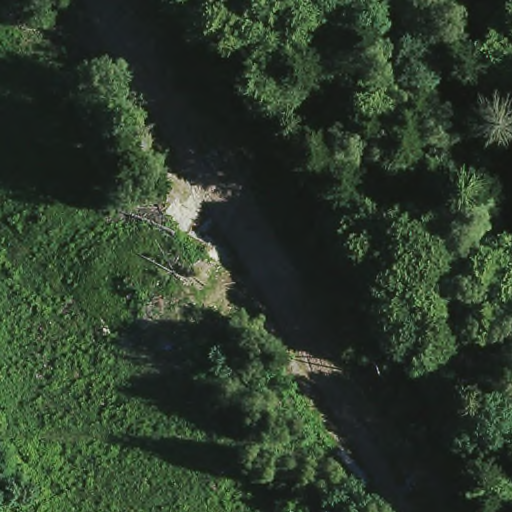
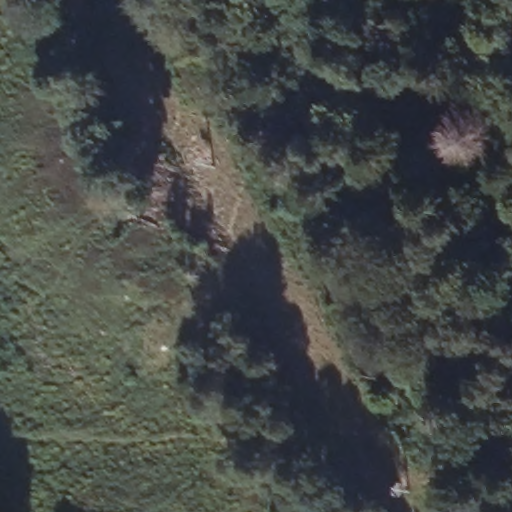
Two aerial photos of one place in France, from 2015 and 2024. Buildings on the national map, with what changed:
[]

